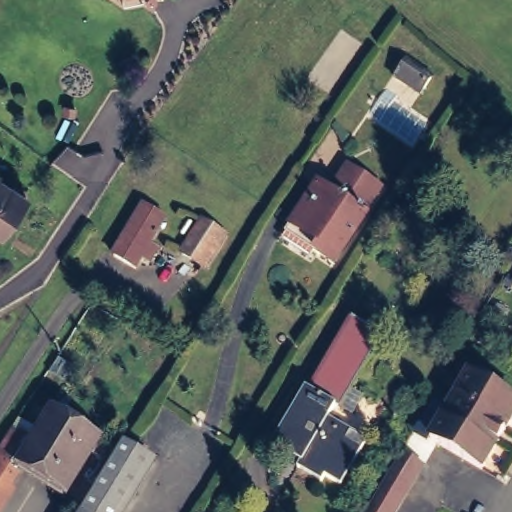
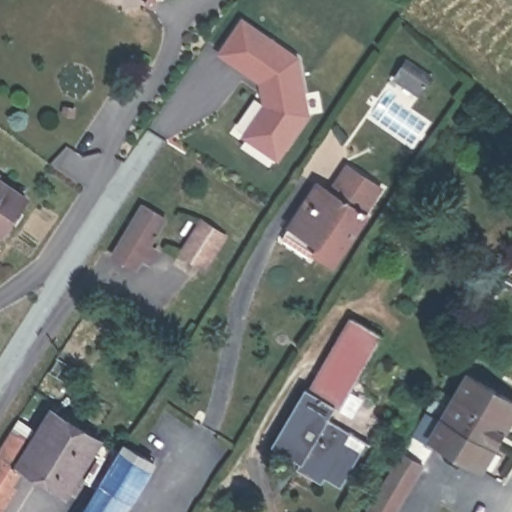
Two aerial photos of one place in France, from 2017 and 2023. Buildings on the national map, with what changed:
new [(242,137),(264,106),(260,83),(217,55),(243,17),(301,58),(312,116),(280,161),(242,137)]
unchanged [(57,111),(67,113),(65,120),(57,119),(57,111)]
unchanged [(297,224),(324,185),(331,192),(336,188),(351,166),(390,190),(376,209),(375,209),(371,215),(371,219),(340,268),(319,254),(290,235),(297,224)]
unchanged [(0,181),(29,198),(5,235),(0,232),(0,181)]
unchanged [(167,224),(136,273),(121,265),(113,260),(145,210),(154,215),(167,224)]
unchanged [(176,258),(194,233),(200,225),(222,241),(217,248),(200,273),(176,258)]
unchanged [(317,480),(297,468),(301,463),(271,446),(305,388),(311,391),(352,318),(383,334),(342,409),(334,404),(327,417),(347,429),(317,480)]
unchanged [(485,471),(435,441),(472,376),(512,400),(512,427),(485,471)]
unchanged [(104,440),(70,491),(27,464),(35,451),(32,449),(57,410),(104,440)]
unchanged [(368,441),(342,488),(326,478),(322,483),(317,480),(347,429),(368,441)]
unchanged [(29,440),(13,464),(31,476),(9,512),(0,512),(0,451),(13,430),(29,440)]
unchanged [(125,447),(158,465),(130,512),(85,512),(100,486),(125,447)]
unchanged [(404,454),(428,468),(423,476),(402,512),(371,512),(400,461),(404,454)]

